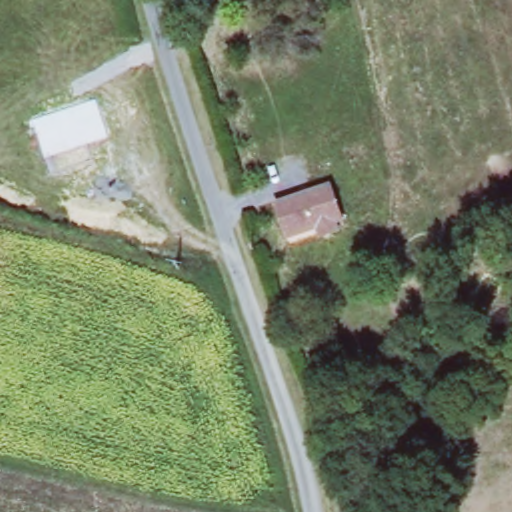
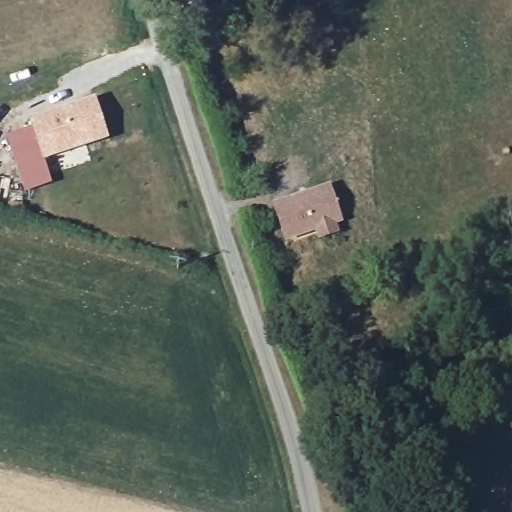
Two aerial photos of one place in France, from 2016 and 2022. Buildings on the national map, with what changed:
new [(7,137),(32,128),(29,119),(94,97),(108,139),(42,161),(49,184),(24,192),(7,137)]
new [(333,191),(343,225),(289,242),(278,209),(333,191)]

